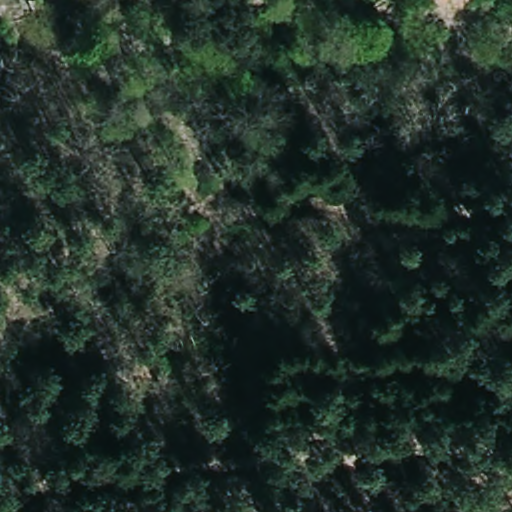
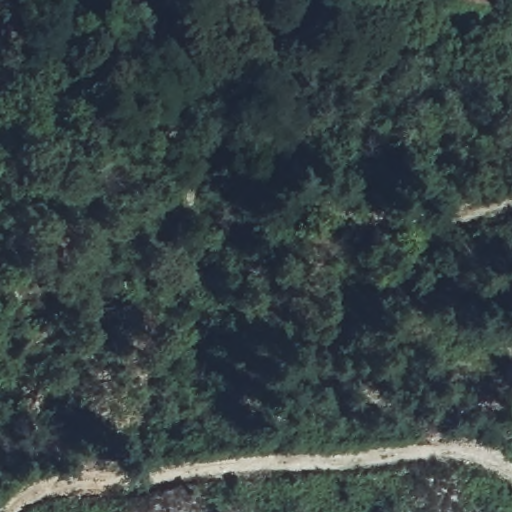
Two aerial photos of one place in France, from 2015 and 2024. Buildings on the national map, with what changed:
[]

